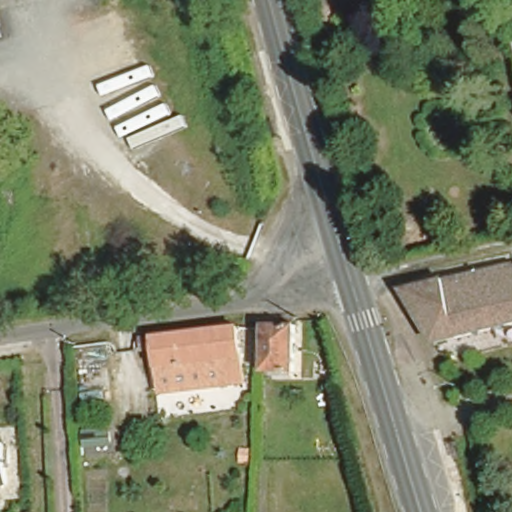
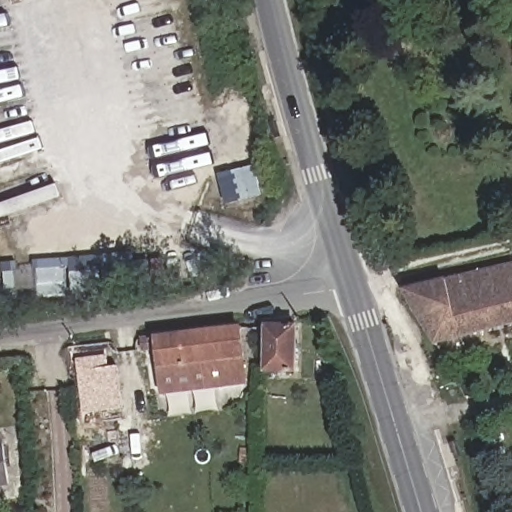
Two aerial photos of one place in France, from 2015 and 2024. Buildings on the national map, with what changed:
unchanged [(433,338),(405,286),(418,283),(454,273),(451,261),(466,258),(470,268),(504,261),(512,259),(512,317),(433,338)]
unchanged [(247,377),(165,386),(159,342),(151,342),(149,329),(241,318),(247,377)]
unchanged [(295,319),(297,365),(270,365),(267,318),(295,319)]
demolished [(102,345),(105,367),(72,370),(70,350),(102,345)]
new [(107,354),(109,366),(119,365),(122,409),(83,413),(76,359),(107,354)]
unchanged [(0,481),(0,438),(6,480),(0,481)]

